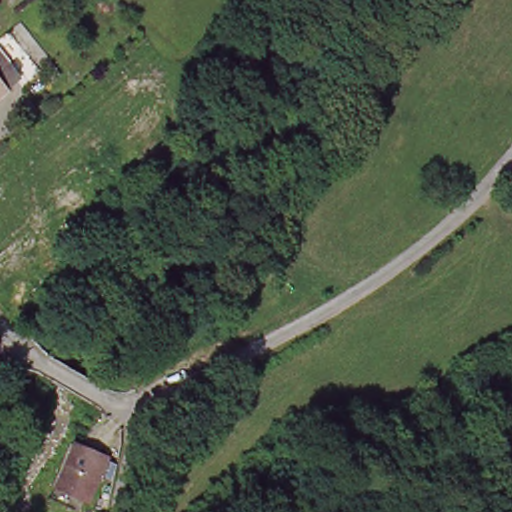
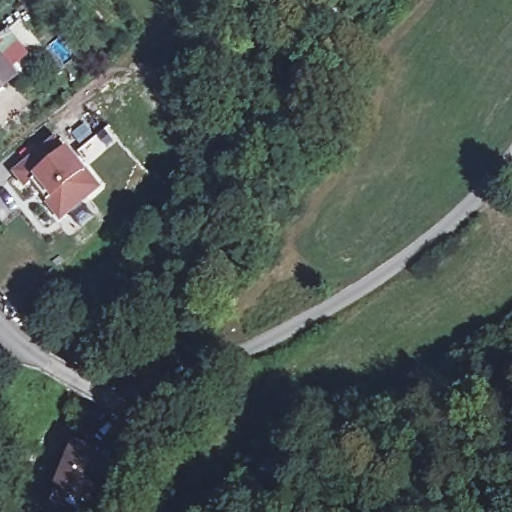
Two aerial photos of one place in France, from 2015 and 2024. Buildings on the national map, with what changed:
unchanged [(10,81),(0,90),(0,70),(10,81)]
new [(30,187),(19,174),(59,142),(69,154),(72,152),(102,189),(65,219),(43,193),(38,197),(30,187)]
unchanged [(92,506),(58,492),(79,443),(113,458),(92,506)]

